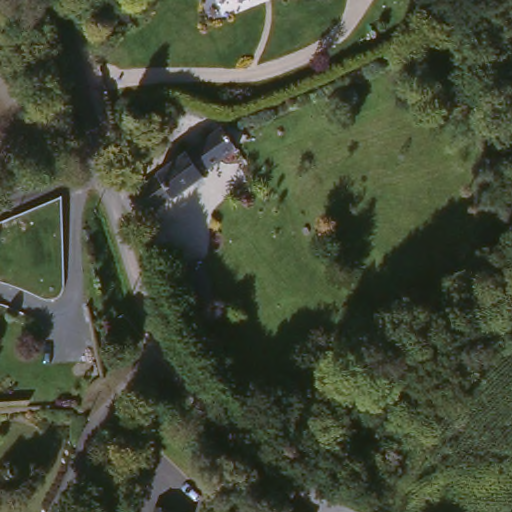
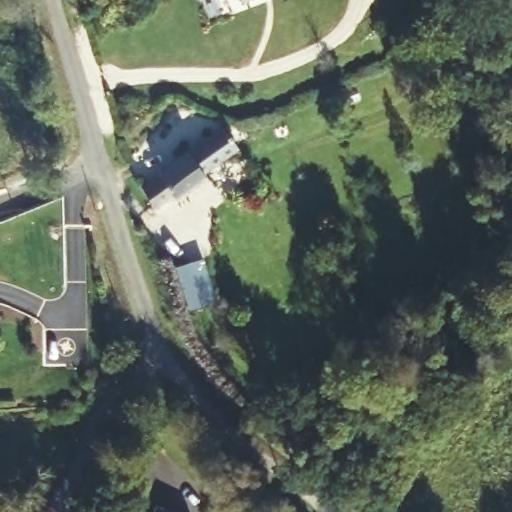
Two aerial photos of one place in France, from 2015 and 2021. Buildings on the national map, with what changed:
unchanged [(245,0),(249,0),(246,2),(245,0)]
unchanged [(239,144),(188,181),(192,189),(161,208),(157,204),(131,223),(130,223),(124,213),(133,205),(130,201),(141,194),(146,191),(140,182),(144,179),(161,168),(188,149),(194,145),(209,135),(213,138),(227,129),(228,129),(239,144)]
unchanged [(202,258),(214,304),(190,309),(171,272),(202,258)]
unchanged [(160,512),(151,512),(152,511),(160,512)]

